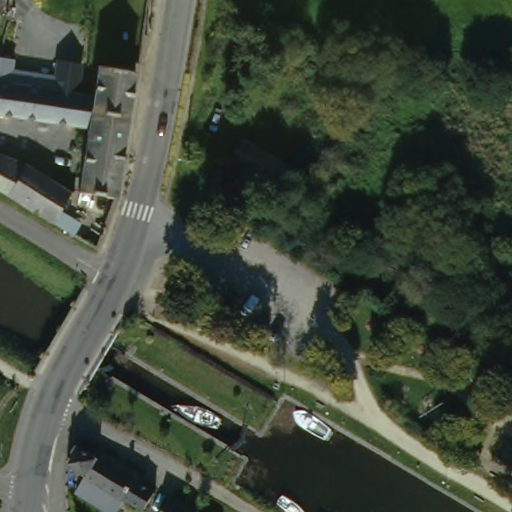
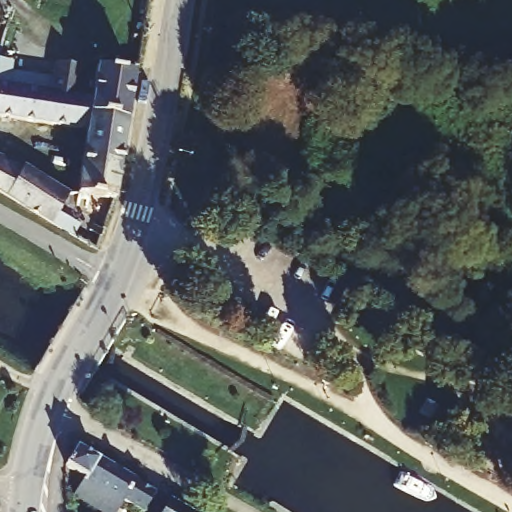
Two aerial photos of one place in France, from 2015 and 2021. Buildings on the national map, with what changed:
unchanged [(146,76),(139,121),(101,116),(104,101),(108,71),(146,76)]
unchanged [(50,94),(104,101),(101,116),(99,126),(97,132),(0,118),(0,97),(7,73),(52,80),(50,94)]
unchanged [(139,121),(131,166),(107,162),(94,161),(97,132),(99,126),(101,116),(139,121)]
unchanged [(256,141),(290,159),(278,182),(245,164),(256,141)]
unchanged [(74,164),(92,171),(87,196),(77,192),(65,185),(37,171),(46,151),(74,164)]
unchanged [(61,225),(0,191),(0,157),(37,171),(65,185),(77,192),(67,215),(88,226),(82,237),(61,225)]
unchanged [(107,162),(131,166),(125,202),(87,196),(92,171),(94,161),(107,162)]
unchanged [(82,440),(105,453),(107,453),(144,476),(145,477),(160,487),(151,504),(135,495),(132,496),(93,472),(72,460),(82,440)]
unchanged [(135,495),(151,504),(146,512),(126,512),(85,488),(93,472),(132,496),(135,495)]
unchanged [(199,512),(166,512),(175,496),(176,497),(200,511),(199,512)]

